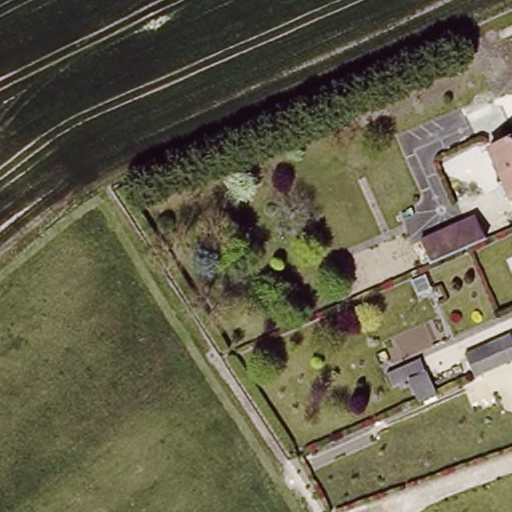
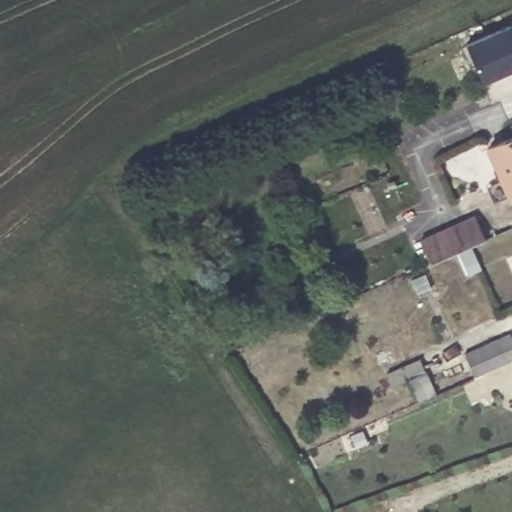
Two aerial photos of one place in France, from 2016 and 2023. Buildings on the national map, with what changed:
new [(480,83),(467,43),(512,26),(512,70),(480,83)]
unchanged [(492,155),(512,145),(512,195),(492,155)]
unchanged [(424,244),(470,224),(480,219),(490,243),(485,245),(480,248),(435,268),(424,244)]
unchanged [(512,339),(512,363),(475,379),(465,357),(512,337),(512,339)]
unchanged [(438,395),(424,402),(414,380),(428,373),(438,395)]

